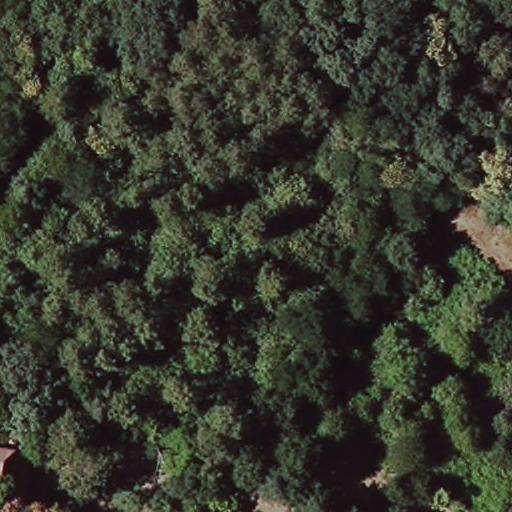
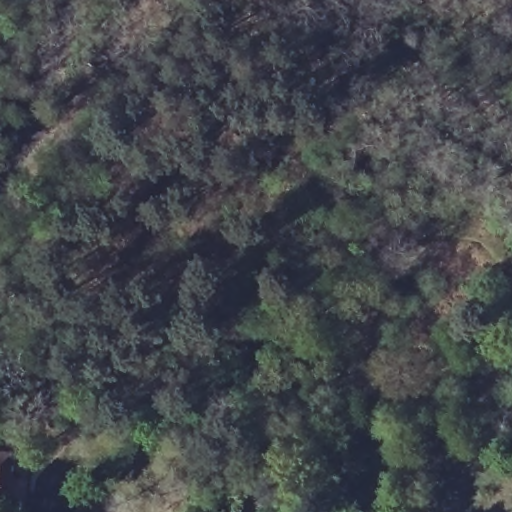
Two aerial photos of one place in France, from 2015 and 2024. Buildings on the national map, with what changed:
unchanged [(19,454),(12,496),(0,494),(0,451),(19,454)]

